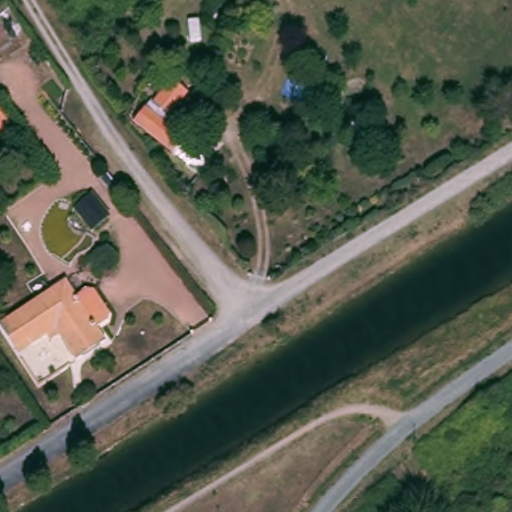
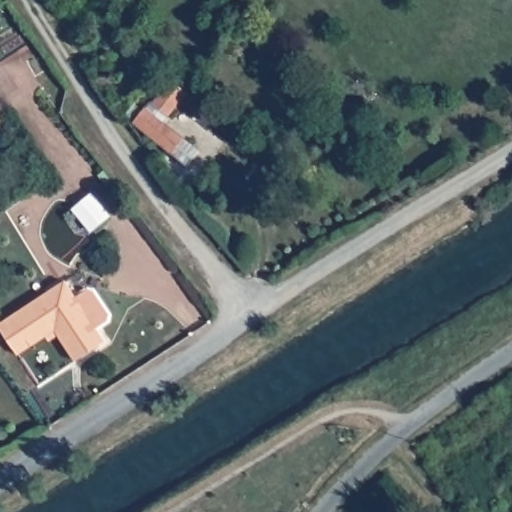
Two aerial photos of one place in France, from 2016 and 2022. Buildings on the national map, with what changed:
unchanged [(136,117),(141,112),(145,116),(154,107),(159,114),(179,137),(167,152),(147,130),(136,117)]
unchanged [(0,141),(0,114),(13,132),(0,141)]
unchanged [(98,232),(80,210),(99,194),(118,217),(98,232)]
unchanged [(16,347),(0,324),(37,301),(69,280),(80,297),(90,287),(97,291),(112,312),(112,322),(102,328),(110,342),(79,363),(59,332),(38,345),(21,357),(16,347)]

